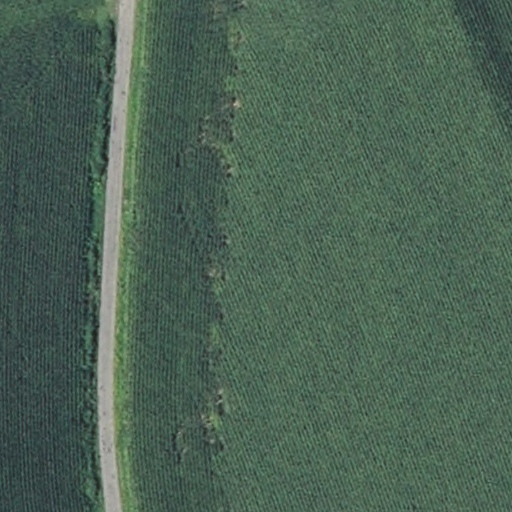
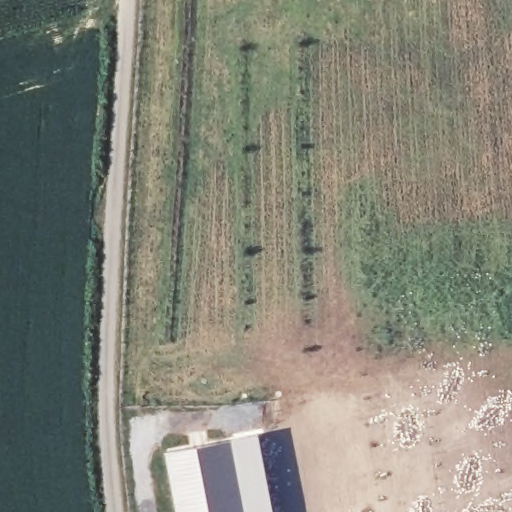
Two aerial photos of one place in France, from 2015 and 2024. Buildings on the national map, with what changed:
new [(232,439),(246,512),(180,512),(169,451),(232,439)]

